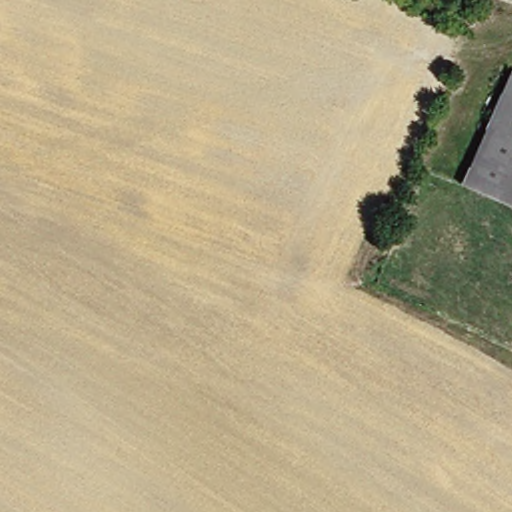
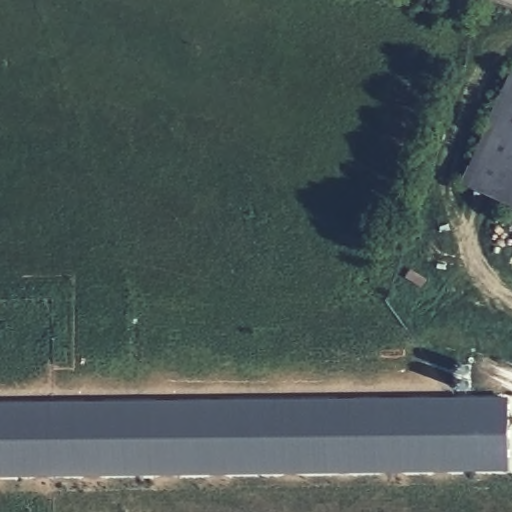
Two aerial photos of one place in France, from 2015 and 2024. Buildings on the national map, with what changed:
unchanged [(460,185),(512,75),(512,211),(503,206),(460,185)]
new [(509,398),(510,474),(0,478),(0,403),(509,398)]

